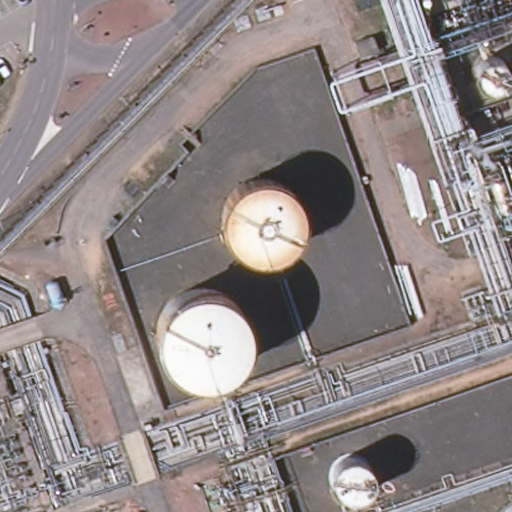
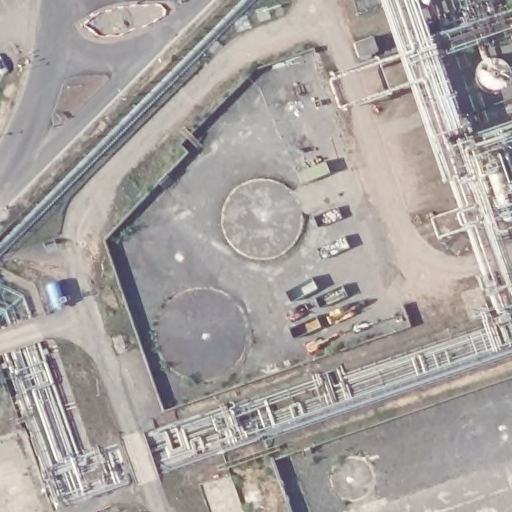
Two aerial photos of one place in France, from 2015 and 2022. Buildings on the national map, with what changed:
unchanged [(512,119),(512,210),(467,222),(439,141),(512,119)]

